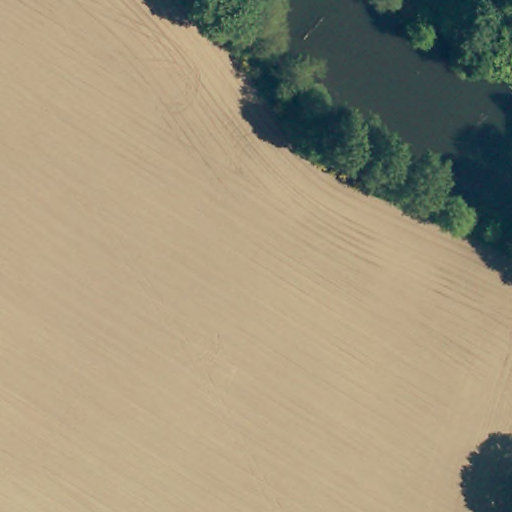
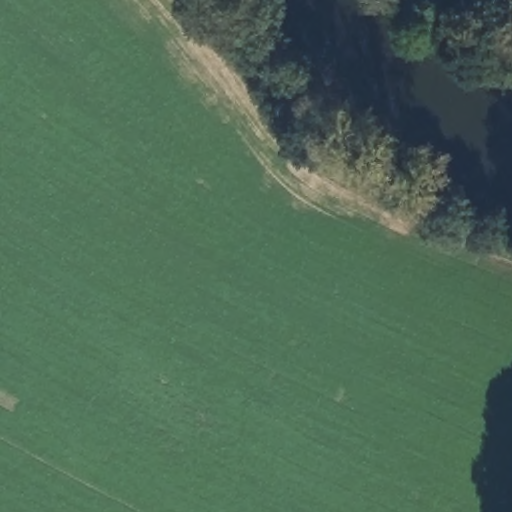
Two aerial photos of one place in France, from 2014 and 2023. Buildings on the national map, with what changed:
[]

